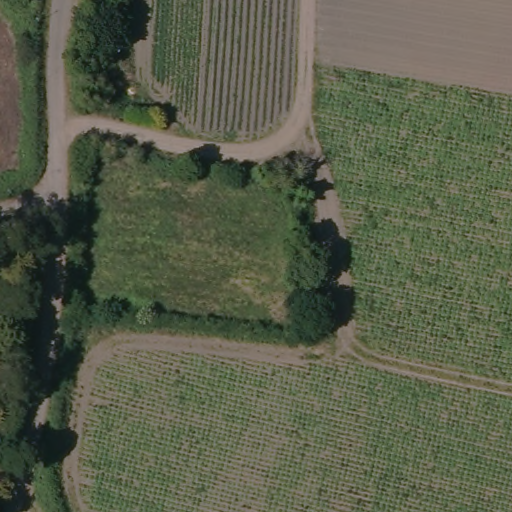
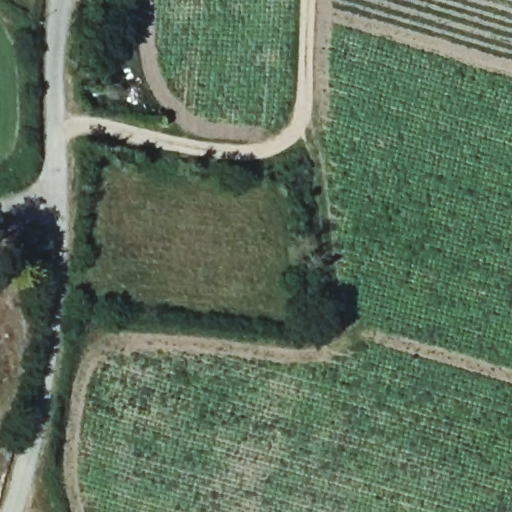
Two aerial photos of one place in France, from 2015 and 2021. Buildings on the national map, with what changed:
[]

